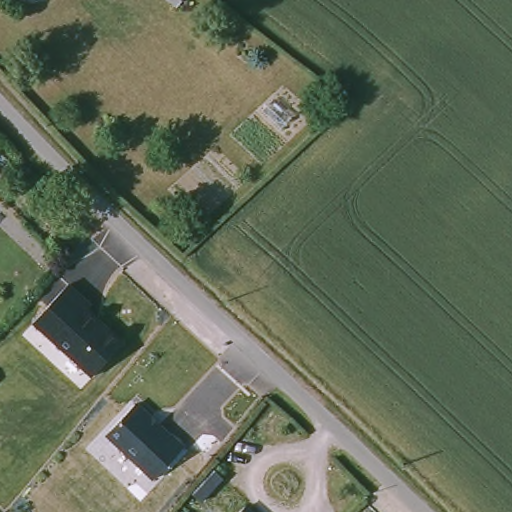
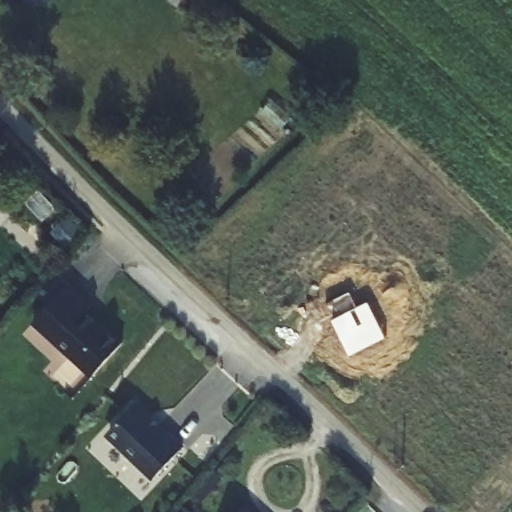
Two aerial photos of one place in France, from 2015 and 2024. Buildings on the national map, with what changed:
unchanged [(97,303),(90,310),(123,340),(88,376),(32,323),(70,282),(97,303)]
new [(387,335),(351,355),(332,320),(368,301),(387,335)]
unchanged [(105,433),(137,400),(185,445),(152,480),(105,433)]
unchanged [(222,482),(200,506),(192,498),(213,475),(222,482)]
unchanged [(245,501),(255,512),(234,512),(245,501)]

